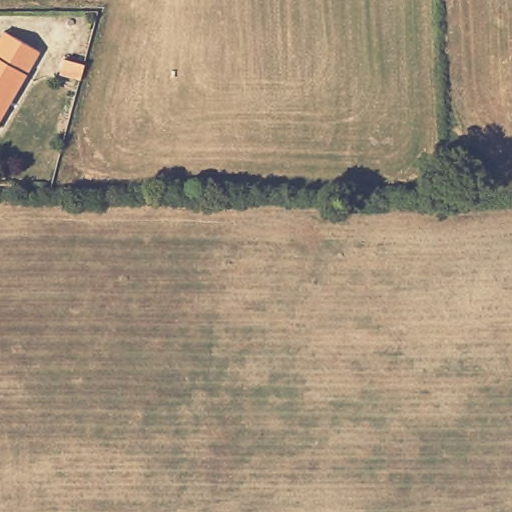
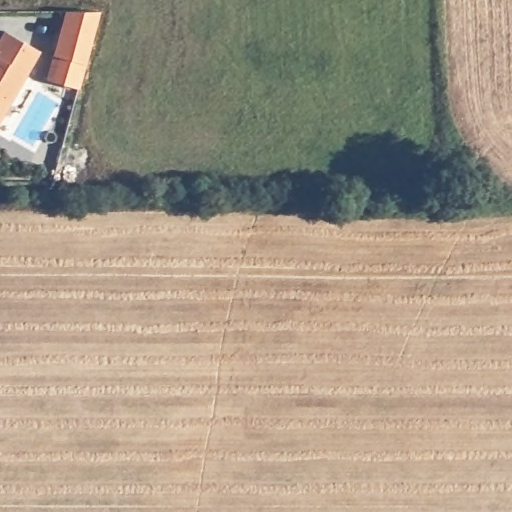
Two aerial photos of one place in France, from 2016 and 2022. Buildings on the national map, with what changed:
new [(64,9),(99,10),(79,88),(46,79),(64,9)]
unchanged [(38,50),(0,117),(0,37),(4,30),(38,50)]

